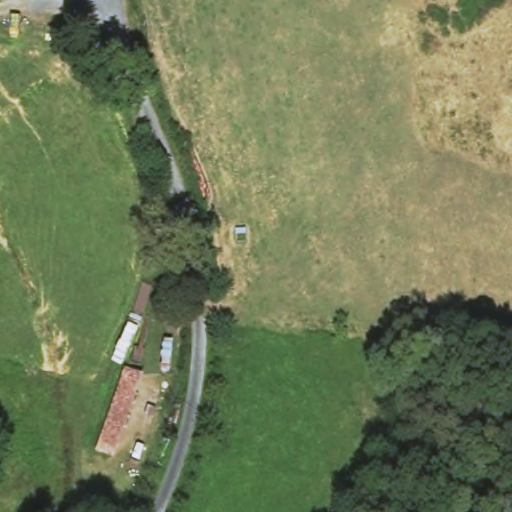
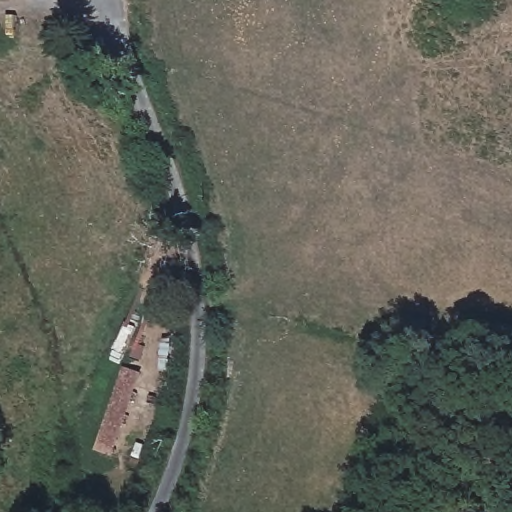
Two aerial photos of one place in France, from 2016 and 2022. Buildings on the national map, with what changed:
unchanged [(133,411),(120,451),(94,442),(121,359),(146,365),(133,411)]

